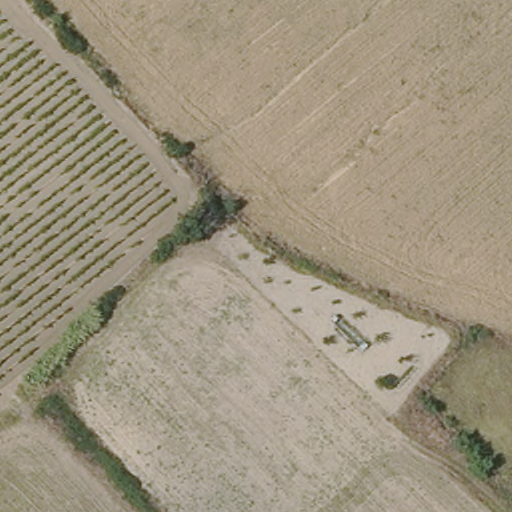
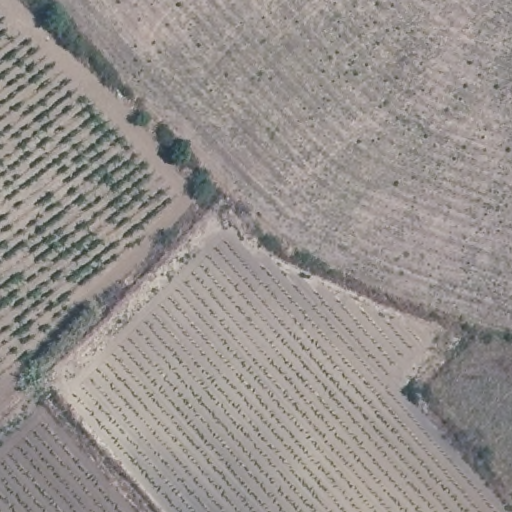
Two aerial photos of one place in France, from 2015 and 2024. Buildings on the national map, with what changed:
[]

